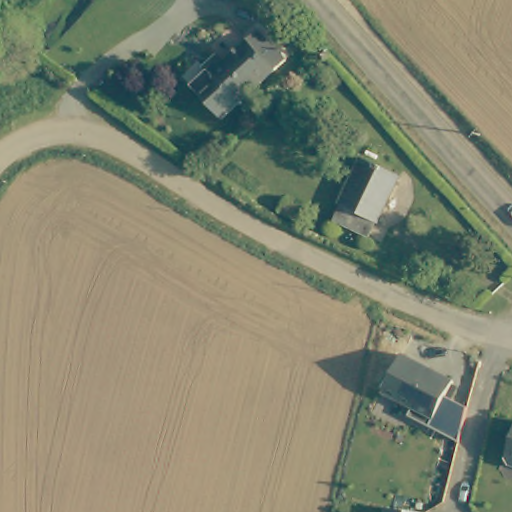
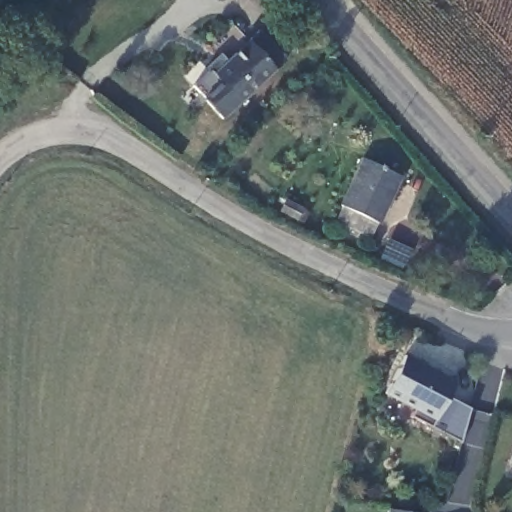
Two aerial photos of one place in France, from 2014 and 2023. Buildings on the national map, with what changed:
unchanged [(220,0),(245,0),(230,13),(220,0)]
unchanged [(222,124),(192,90),(209,75),(206,72),(221,59),(227,66),(261,36),(287,66),(222,124)]
unchanged [(403,167),(374,228),(338,215),(368,150),(403,167)]
unchanged [(408,417),(412,410),(384,395),(404,355),(452,381),(444,398),(469,409),(460,442),(408,417)]
unchanged [(504,476),(512,450),(512,483),(508,482),(504,476)]

